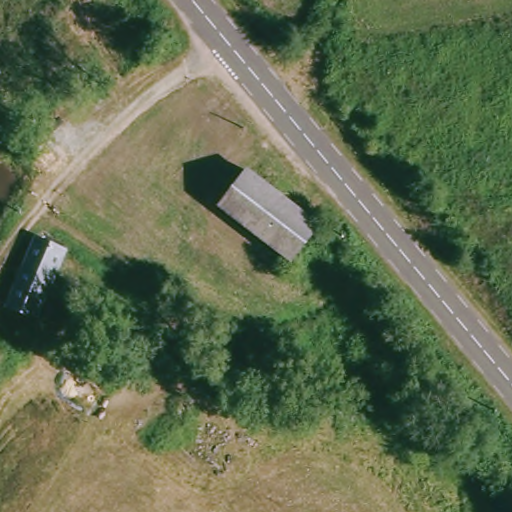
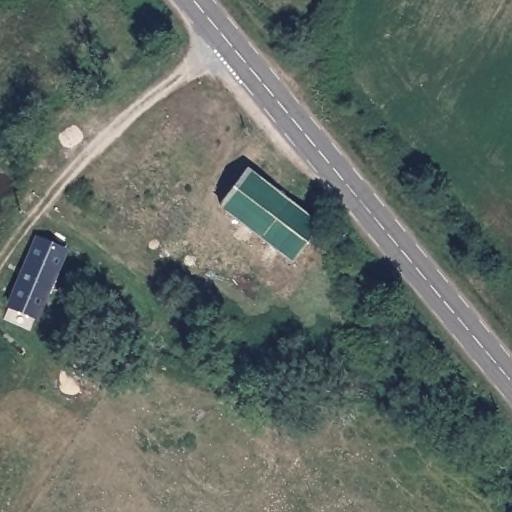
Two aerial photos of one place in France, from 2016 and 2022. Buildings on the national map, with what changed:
unchanged [(225,200),(254,167),(325,229),(295,261),(260,231),(225,200)]
unchanged [(58,273),(33,311),(7,294),(35,255),(58,273)]

